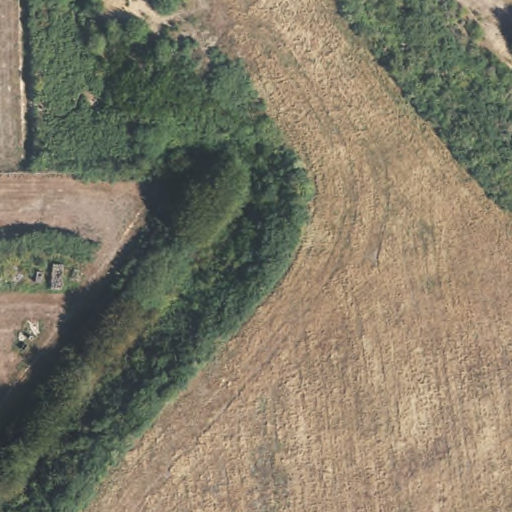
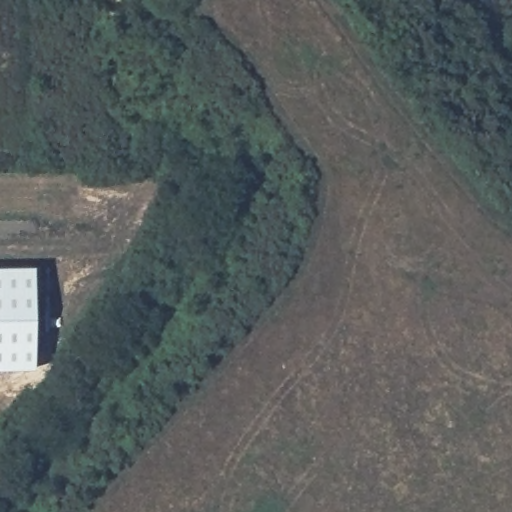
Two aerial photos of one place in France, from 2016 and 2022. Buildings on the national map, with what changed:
new [(35,369),(0,369),(0,266),(33,265),(35,369)]

